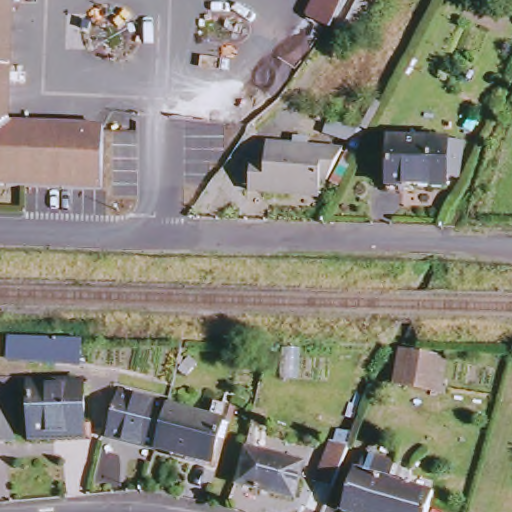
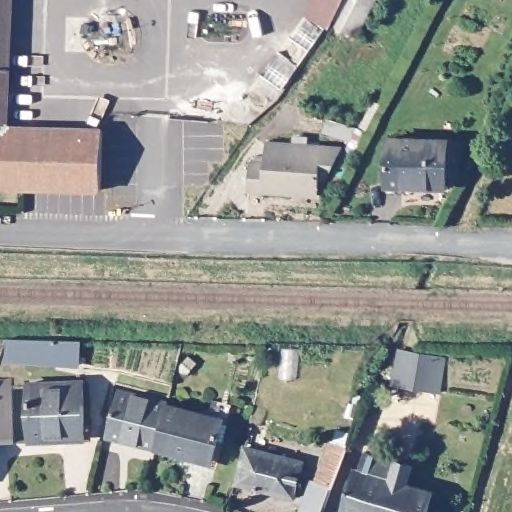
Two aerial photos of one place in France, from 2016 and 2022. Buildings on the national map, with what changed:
unchanged [(9,0),(8,67),(0,67),(0,0),(9,0)]
unchanged [(326,35),(301,21),(312,0),(345,0),(332,25),(326,35)]
unchanged [(332,25),(345,0),(369,0),(351,36),(332,25)]
unchanged [(5,124),(99,127),(96,189),(0,185),(0,67),(8,67),(5,124)]
unchanged [(287,197),(287,195),(243,193),(244,164),(248,164),(248,159),(261,159),(261,144),(289,146),(290,139),(303,139),(303,148),(339,151),(323,180),(314,179),(314,191),(314,199),(287,197)]
unchanged [(452,143),(451,179),(439,179),(439,188),(379,187),(380,142),(452,143)]
unchanged [(58,340),(57,359),(16,359),(17,339),(58,340)]
unchanged [(430,359),(424,393),(389,386),(395,352),(430,359)]
unchanged [(78,378),(81,434),(23,436),(21,381),(78,378)]
unchanged [(104,434),(118,389),(163,402),(163,405),(149,448),(104,434)]
unchanged [(3,441),(0,441),(0,390),(3,441)]
unchanged [(203,418),(208,402),(227,409),(223,424),(217,422),(204,462),(181,454),(179,457),(149,448),(163,405),(203,418)]
unchanged [(344,449),(331,489),(314,482),(329,443),(344,449)]
unchanged [(244,449),(303,464),(293,500),(268,493),(235,484),(244,449)]
unchanged [(348,474),(354,476),(359,459),(389,469),(384,484),(427,497),(423,512),(338,512),(348,474)]

